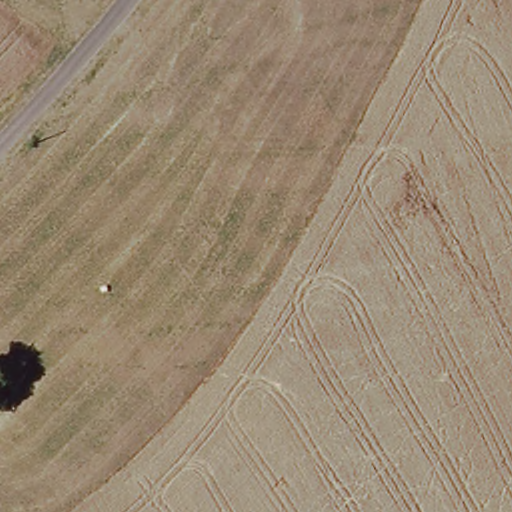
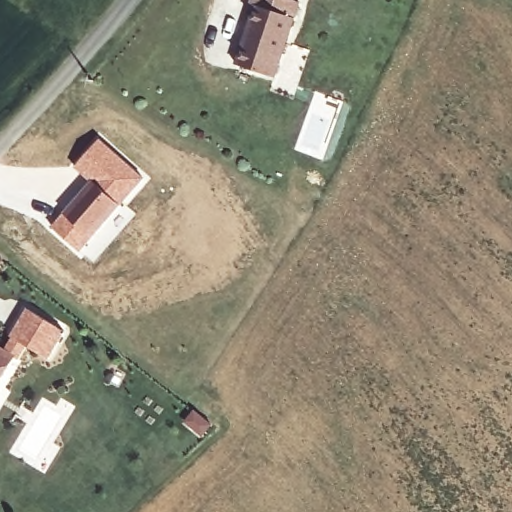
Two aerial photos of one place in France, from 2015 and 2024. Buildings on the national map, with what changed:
new [(236,64),(254,7),(248,6),(250,0),(289,0),(300,4),(275,78),(236,64)]
new [(92,261),(80,252),(50,227),(90,181),(72,165),(100,137),(145,178),(123,204),(135,214),(92,261)]
new [(5,349),(27,309),(66,332),(50,360),(28,348),(20,361),(16,360),(0,388),(0,346),(5,349)]

